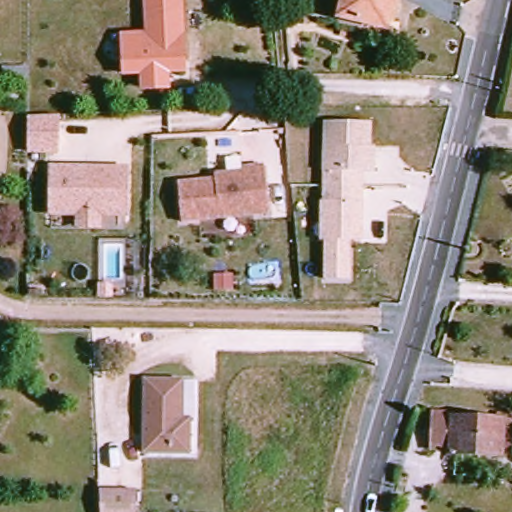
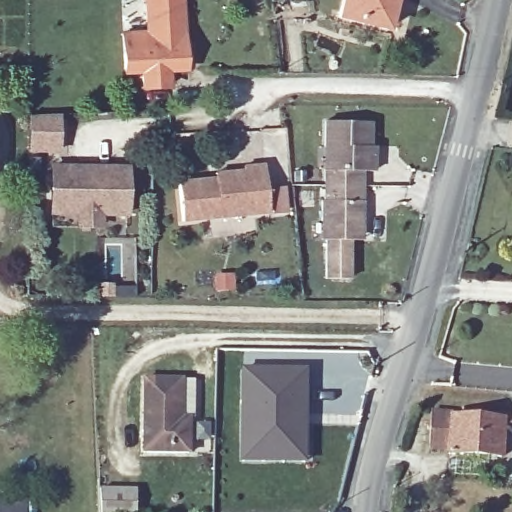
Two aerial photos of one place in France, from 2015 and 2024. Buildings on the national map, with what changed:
unchanged [(139,75),(124,75),(120,30),(142,30),(141,0),(184,0),(189,71),(169,73),(169,92),(139,92),(139,75)]
unchanged [(385,29),(337,17),(342,0),(393,0),(385,29)]
unchanged [(26,115),(60,115),(60,154),(26,152),(26,115)]
unchanged [(371,121),(371,148),(376,148),(376,172),(363,173),(363,186),(322,185),(322,121),(371,121)]
unchanged [(177,180),(212,177),(211,171),(245,169),(244,163),(263,160),(268,214),(181,221),(177,180)]
unchanged [(47,164),(128,164),(128,215),(102,215),(102,229),(73,229),(73,215),(47,215),(47,164)]
unchanged [(363,240),(350,240),(349,280),(323,281),(322,185),(363,186),(363,240)]
new [(247,370),(309,370),(309,445),(247,445),(247,370)]
unchanged [(142,456),(142,385),(181,387),(190,387),(190,425),(188,425),(188,458),(142,456)]
unchanged [(450,443),(429,443),(429,423),(448,423),(448,416),(504,420),(512,420),(512,427),(504,427),(501,461),(450,461),(450,443)]
new [(247,445),(309,445),(309,462),(246,461),(247,445)]
demolished [(110,450),(112,480),(99,480),(98,448),(110,450)]
unchanged [(135,486),(135,512),(98,512),(98,486),(135,486)]

